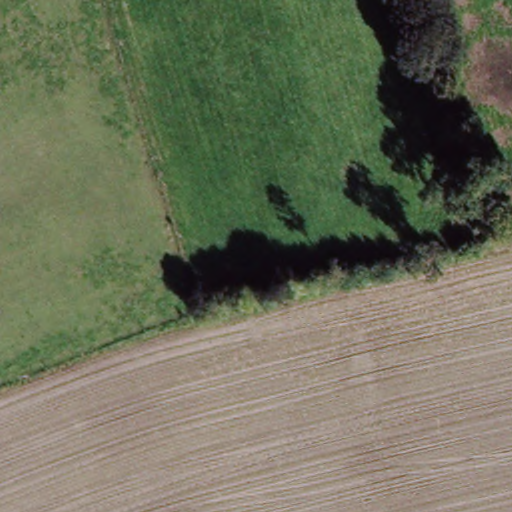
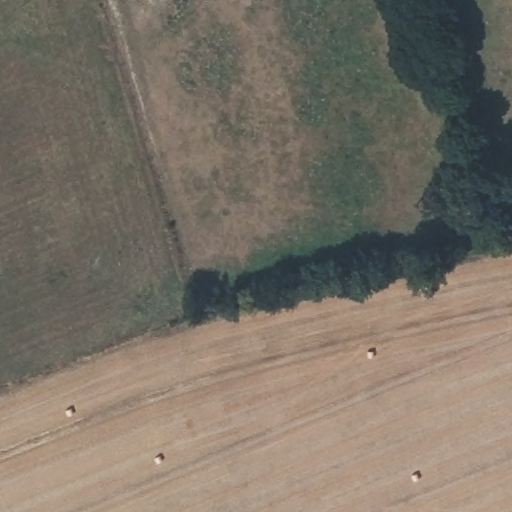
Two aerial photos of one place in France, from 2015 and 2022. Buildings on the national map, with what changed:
[]

